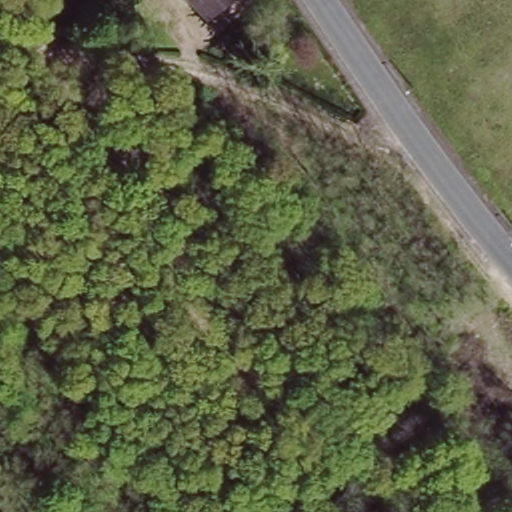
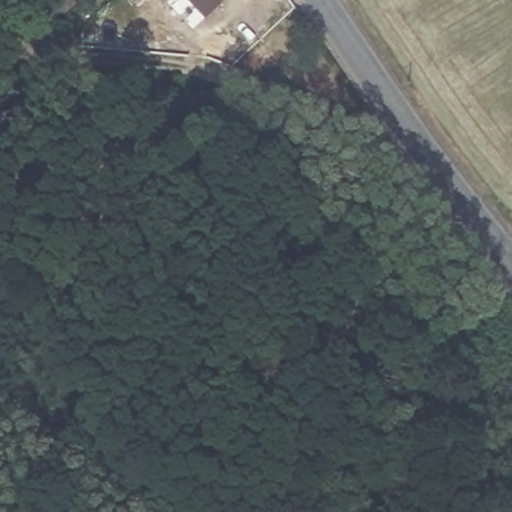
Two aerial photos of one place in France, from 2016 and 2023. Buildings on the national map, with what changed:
unchanged [(205,19),(188,0),(226,0),(205,19)]
unchanged [(88,164),(68,179),(40,131),(62,115),(88,164)]
unchanged [(137,288),(112,313),(80,280),(107,256),(137,288)]

